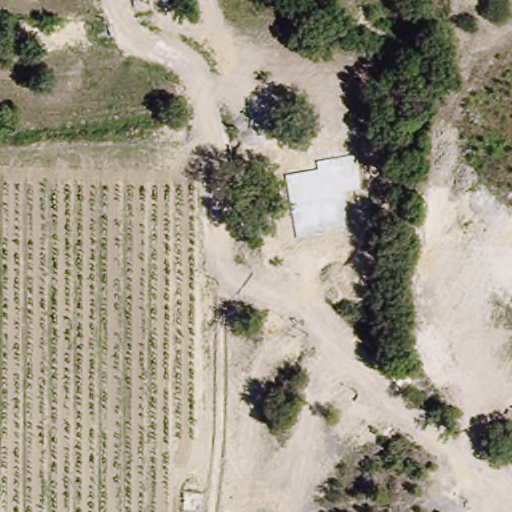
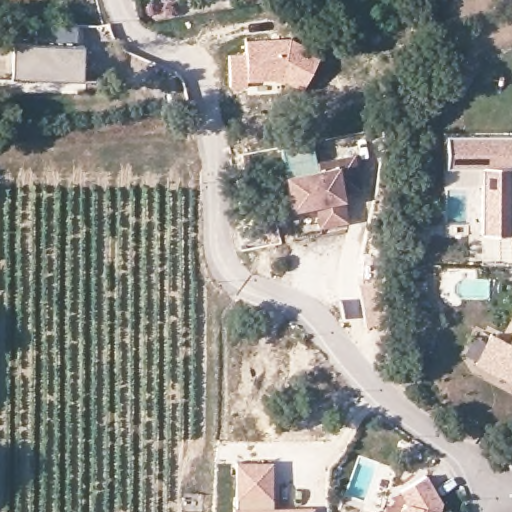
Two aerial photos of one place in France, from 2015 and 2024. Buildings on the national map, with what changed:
new [(85,76),(10,74),(0,73),(0,38),(36,39),(36,27),(75,28),(75,50),(86,50),(85,76)]
new [(245,38),(288,36),(304,41),(322,50),(303,89),(281,82),(267,81),(247,81),(247,90),(230,91),(227,53),(245,52),(245,38)]
new [(482,167),(447,166),(447,134),(512,134),(512,236),(481,234),(482,167)]
unchanged [(311,166),(329,162),(348,158),(356,191),(338,195),(345,224),(318,231),(313,209),(288,215),(281,182),(313,174),(311,166)]
new [(490,334),(509,344),(512,337),(512,380),(476,360),(490,334)]
new [(236,512),(236,505),(234,505),(235,463),(271,463),(271,500),(264,500),(264,506),(310,506),(309,512),(236,512)]
new [(408,501),(403,491),(422,482),(436,510),(435,512),(400,512),(402,505),(408,501)]

